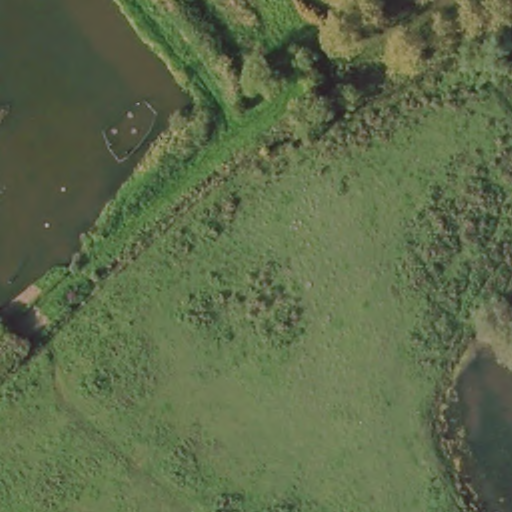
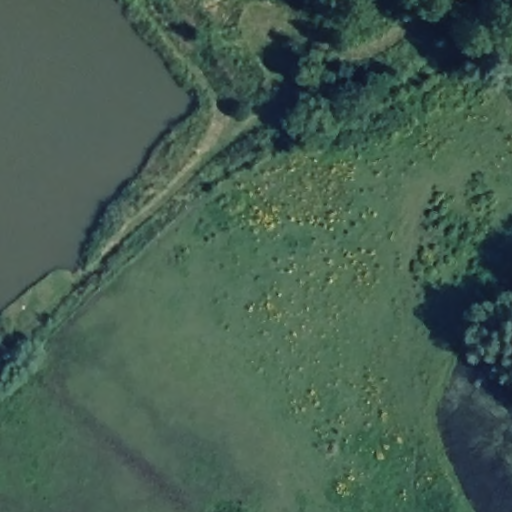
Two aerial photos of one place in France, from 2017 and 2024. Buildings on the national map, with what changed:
unchanged [(0,364),(0,329),(18,345),(0,364)]

